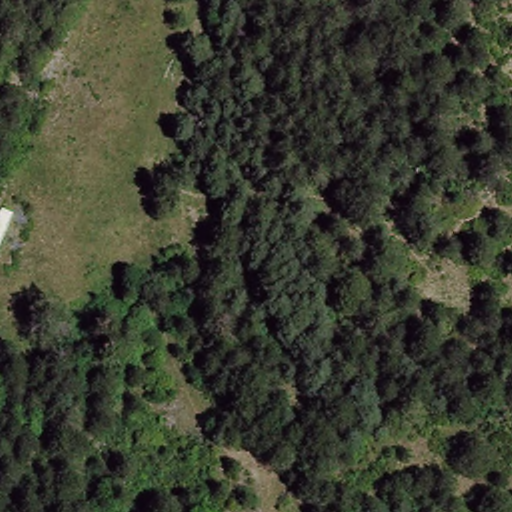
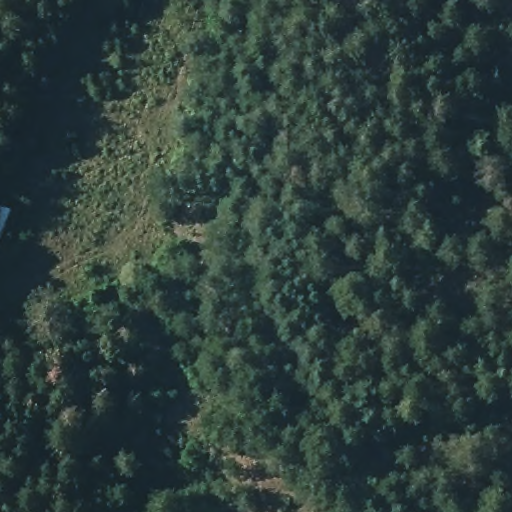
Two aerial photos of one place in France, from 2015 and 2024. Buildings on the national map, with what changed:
unchanged [(15,210),(0,247),(0,203),(15,210)]

